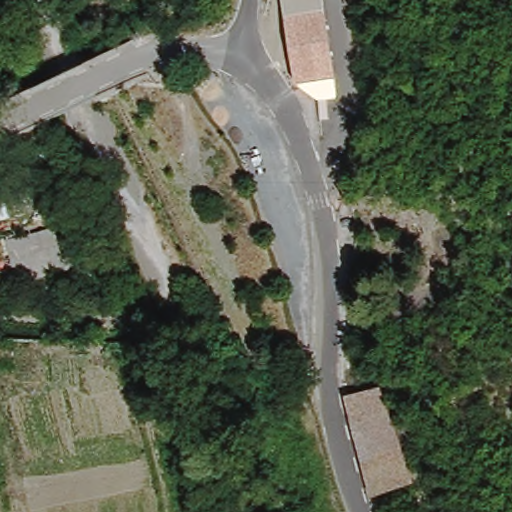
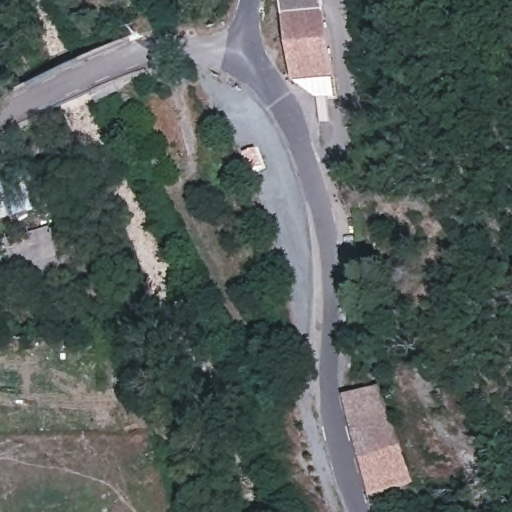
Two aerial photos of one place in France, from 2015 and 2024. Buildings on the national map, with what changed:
unchanged [(317,0),(318,4),(278,9),(278,0),(317,0)]
unchanged [(315,94),(311,78),(290,81),(278,9),(318,4),(331,91),(315,94)]
unchanged [(3,244),(35,232),(49,280),(20,292),(3,244)]
unchanged [(345,396),(347,396),(369,390),(381,387),(407,488),(371,497),(367,482),(345,396)]

